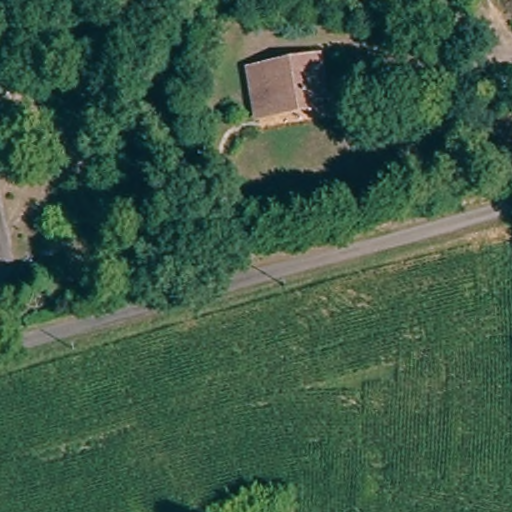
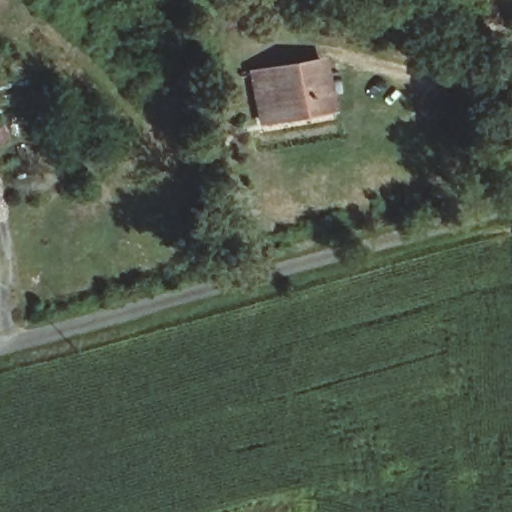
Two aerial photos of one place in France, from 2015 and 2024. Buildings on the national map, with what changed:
unchanged [(260,115),(247,76),(316,57),(330,102),(310,107),(261,120),(260,115)]

